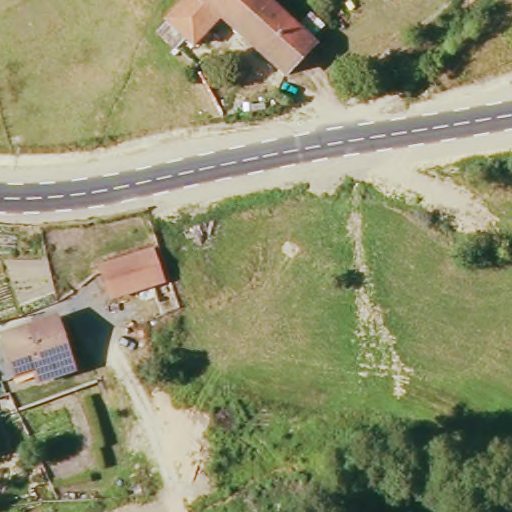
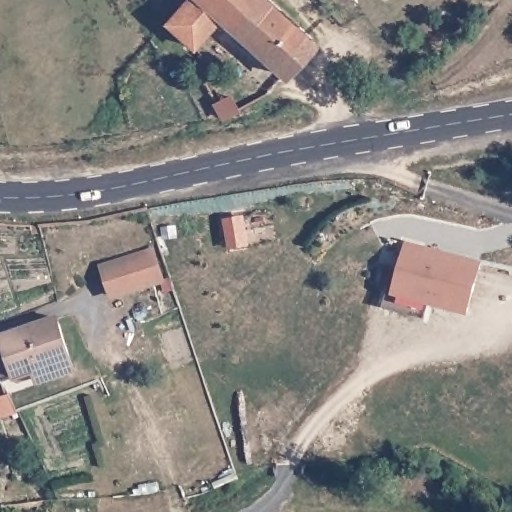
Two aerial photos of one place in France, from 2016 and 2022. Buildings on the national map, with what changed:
unchanged [(263,0),(315,45),(286,79),(218,19),(192,49),(165,24),(187,0),(263,0)]
unchanged [(383,0),(388,0),(384,2),(383,0)]
unchanged [(232,117),(231,101),(260,95),(263,111),(232,117)]
new [(239,213),(243,234),(228,243),(222,217),(239,213)]
new [(390,295),(405,242),(481,262),(468,315),(390,295)]
unchanged [(96,269),(155,251),(165,285),(106,304),(96,269)]
unchanged [(5,332),(55,314),(68,349),(70,354),(20,371),(18,369),(5,332)]

